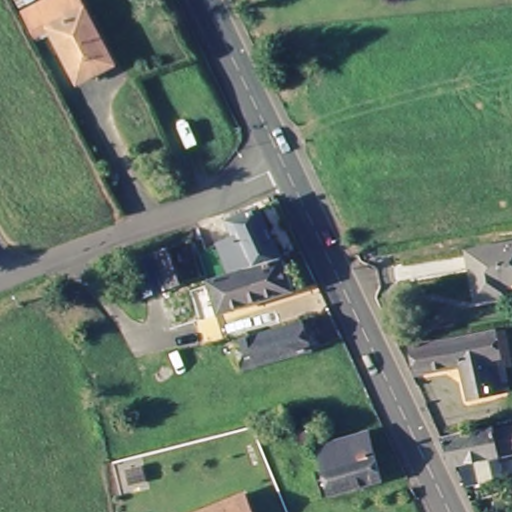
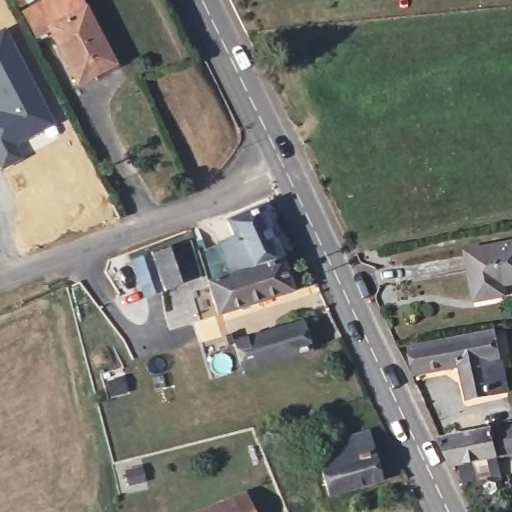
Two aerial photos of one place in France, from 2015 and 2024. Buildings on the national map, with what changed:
unchanged [(79,83),(52,29),(38,36),(34,27),(26,12),(19,0),(41,0),(44,4),(51,0),(81,0),(81,2),(113,66),(79,83)]
new [(1,30),(15,56),(44,112),(50,123),(39,128),(11,143),(18,156),(0,166),(0,31),(1,30)]
unchanged [(238,234),(232,219),(264,206),(282,254),(209,275),(200,248),(238,234)]
unchanged [(171,246),(185,286),(149,297),(135,257),(171,246)]
unchanged [(471,304),(463,256),(512,248),(512,285),(501,286),(503,299),(492,301),(471,304)]
unchanged [(282,254),(296,291),(223,316),(209,275),(282,254)]
unchanged [(300,320),(312,351),(242,374),(231,342),(300,320)]
unchanged [(493,331),(494,331),(500,361),(486,364),(491,399),(470,403),(460,370),(420,378),(411,346),(493,331)]
unchanged [(502,435),(512,433),(512,454),(463,465),(451,441),(501,430),(502,435)]
unchanged [(375,434),(386,478),(333,491),(322,445),(375,434)]
unchanged [(255,512),(210,512),(249,497),(255,512)]

